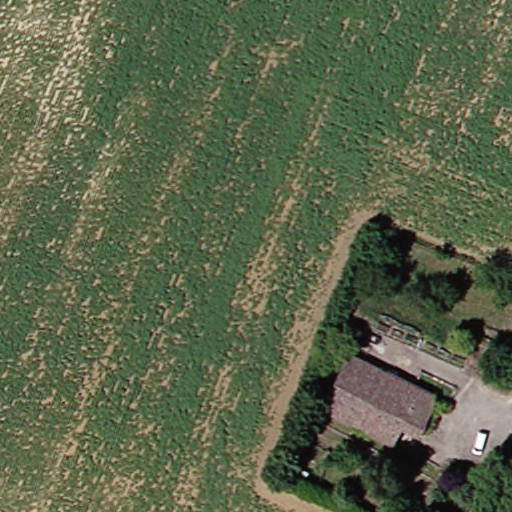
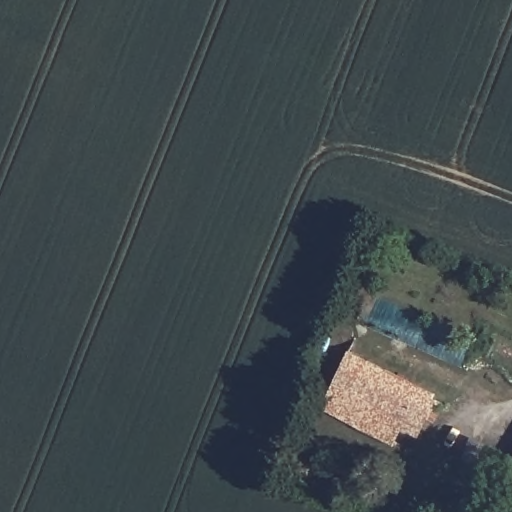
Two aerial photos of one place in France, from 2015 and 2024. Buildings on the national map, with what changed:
unchanged [(423,436),(409,429),(402,447),(326,411),(355,353),(443,395),(423,436)]

